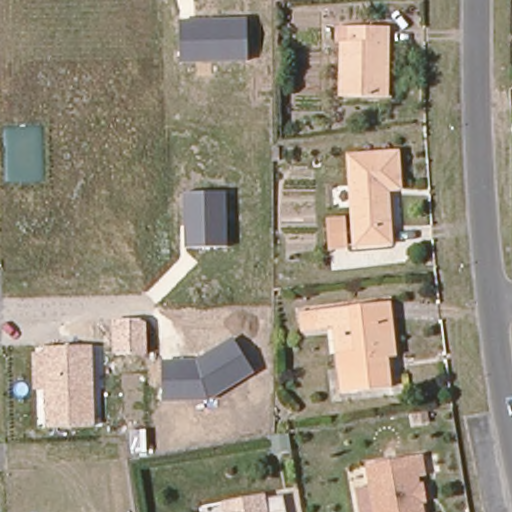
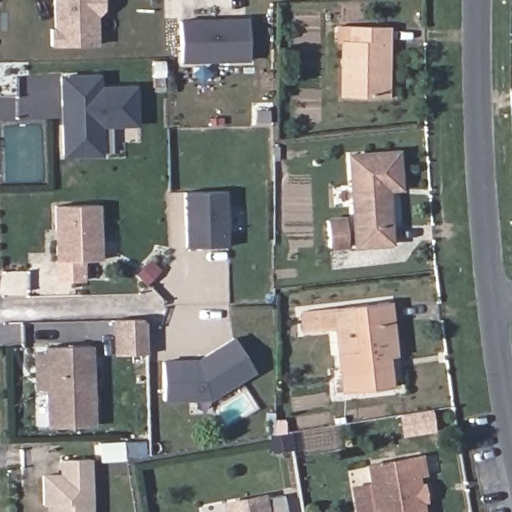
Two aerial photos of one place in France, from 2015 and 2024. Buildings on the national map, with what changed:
new [(52,45),(52,31),(56,31),(55,0),(96,0),(97,44),(52,45)]
unchanged [(249,60),(181,63),(179,20),(247,18),(249,60)]
unchanged [(341,97),(342,33),(389,33),(389,45),(388,100),(341,97)]
new [(100,74),(101,86),(137,85),(137,127),(118,127),(119,153),(63,156),(58,74),(100,74)]
unchanged [(358,246),(354,156),(401,154),(401,188),(388,190),(390,244),(358,246)]
unchanged [(227,247),(185,247),(184,193),(226,192),(227,247)]
new [(55,261),(52,205),(100,204),(101,260),(55,261)]
unchanged [(326,246),(325,222),(346,221),(348,244),(326,246)]
unchanged [(305,308),(390,298),(395,345),(390,346),(395,384),(348,391),(342,350),(336,324),(308,325),(305,308)]
unchanged [(147,354),(113,355),(112,320),(140,318),(146,322),(147,354)]
unchanged [(208,400),(162,402),(161,361),(196,360),(235,337),(255,372),(208,400)]
unchanged [(44,346),(92,344),(95,426),(45,428),(45,389),(32,389),(32,352),(44,352),(44,346)]
unchanged [(293,443),(275,446),(272,428),(280,427),(291,426),(293,443)]
new [(61,474),(61,459),(90,458),(92,512),(49,512),(48,505),(41,482),(45,478),(61,474)]
unchanged [(371,464),(384,464),(422,458),(426,475),(420,477),(425,512),(377,512),(371,464)]
unchanged [(224,501),(242,499),(265,497),(265,498),(282,495),(285,512),(225,512),(224,501)]

